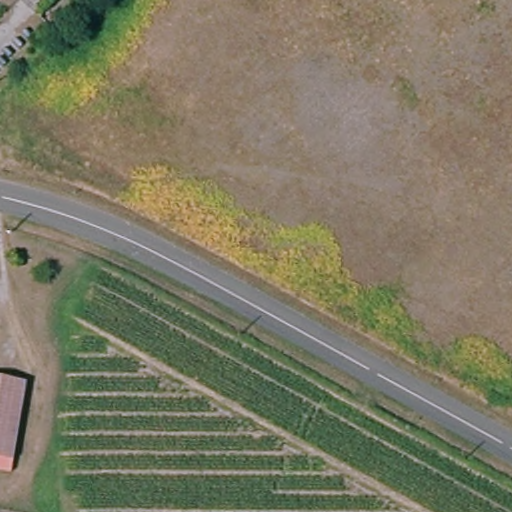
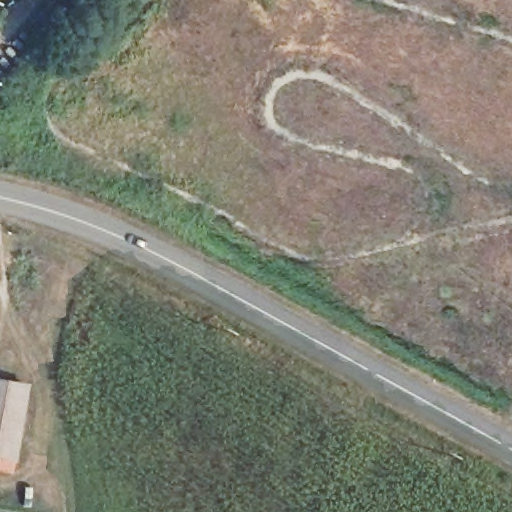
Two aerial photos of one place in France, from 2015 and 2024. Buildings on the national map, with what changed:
unchanged [(2,461),(0,468),(0,379),(32,384),(19,463),(2,461)]

